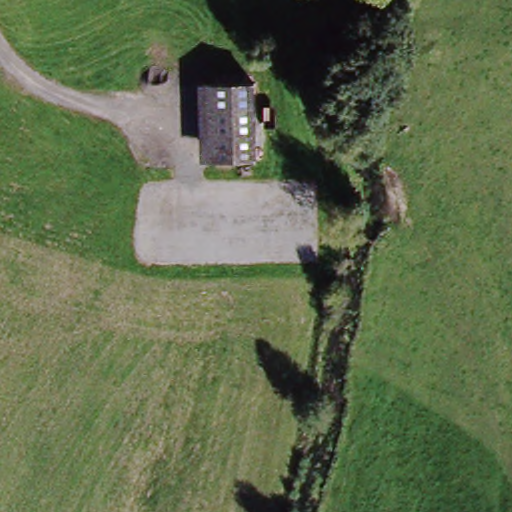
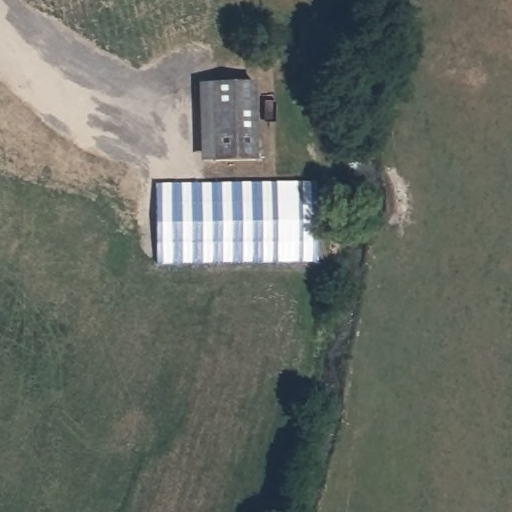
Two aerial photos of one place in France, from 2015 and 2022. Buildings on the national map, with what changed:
unchanged [(256,84),(262,157),(216,162),(209,88),(256,84)]
unchanged [(195,90),(209,88),(216,162),(201,164),(195,90)]
demolished [(310,177),(314,261),(160,263),(158,180),(310,177)]

